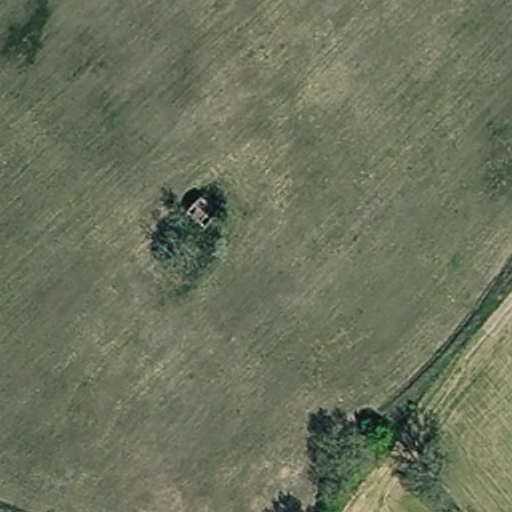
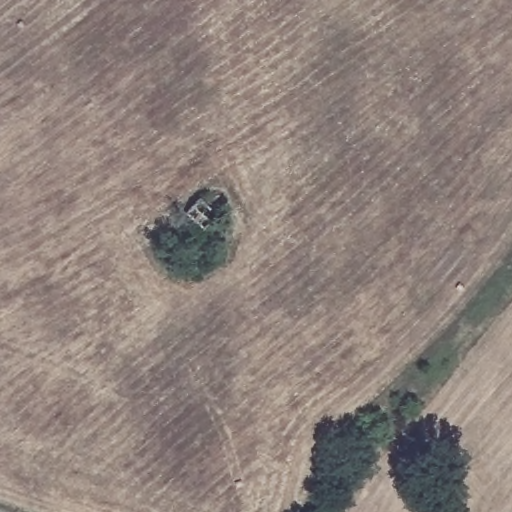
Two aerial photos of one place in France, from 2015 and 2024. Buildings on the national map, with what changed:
unchanged [(217,222),(202,235),(185,215),(199,202),(217,222)]

